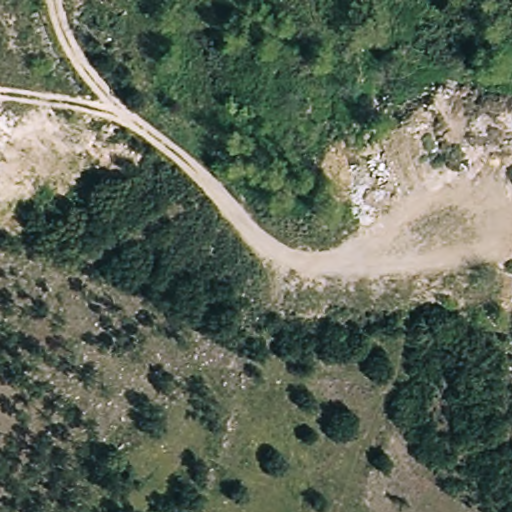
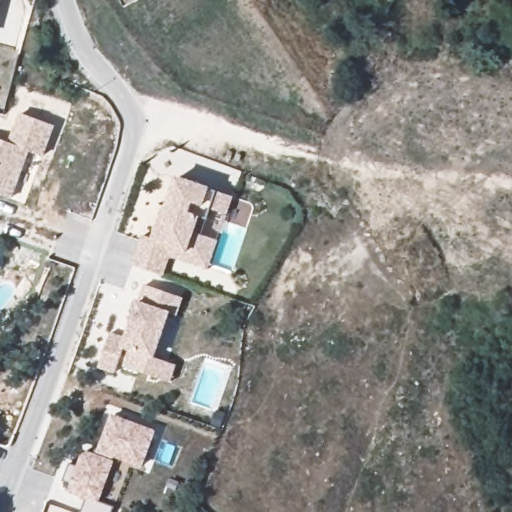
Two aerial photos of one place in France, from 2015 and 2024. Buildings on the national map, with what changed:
new [(0,4),(0,0),(1,0),(0,4)]
new [(0,189),(0,134),(9,137),(20,109),(52,120),(40,150),(23,198),(9,193),(27,145),(8,192),(0,189)]
new [(151,232),(161,204),(165,205),(176,172),(231,191),(225,207),(202,200),(193,226),(201,230),(194,249),(171,241),(168,250),(162,270),(131,260),(141,230),(151,232)]
new [(171,241),(194,249),(201,230),(193,226),(202,200),(225,207),(206,263),(168,250),(171,241)]
new [(169,383),(155,378),(124,367),(130,350),(123,347),(114,373),(98,367),(110,333),(126,340),(139,302),(146,286),(153,288),(183,300),(177,317),(169,314),(154,358),(161,361),(175,366),(169,383)]
new [(78,463),(84,449),(93,452),(95,446),(99,448),(111,414),(153,430),(141,463),(114,453),(98,499),(113,505),(110,512),(79,512),(85,495),(69,488),(72,481),(63,478),(69,460),(78,463)]

